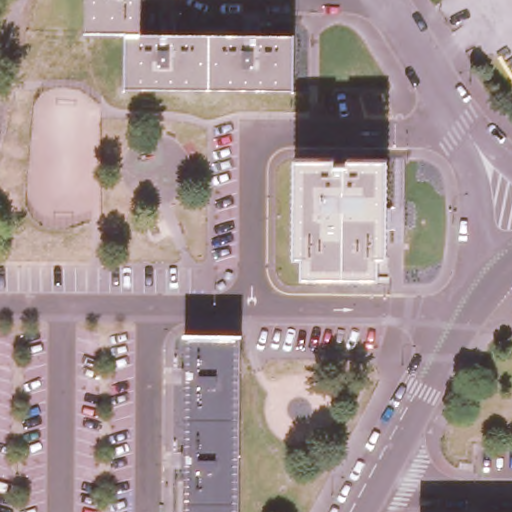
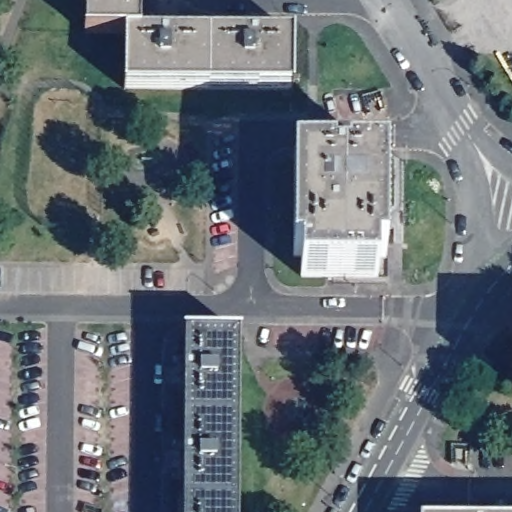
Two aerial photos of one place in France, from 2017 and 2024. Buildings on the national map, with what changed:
unchanged [(146,31),(129,31),(89,31),(90,0),(146,0),(146,31)]
unchanged [(146,31),(166,31),(166,26),(181,26),(181,31),(247,32),(247,27),(262,27),(262,32),(298,32),(298,89),(129,88),(129,31),(146,31)]
unchanged [(340,155),(339,160),(352,159),(352,155),(391,156),(390,255),(382,255),(382,276),(305,275),(305,255),(298,255),(299,155),(340,155)]
unchanged [(177,465),(177,450),(182,450),(183,385),(178,385),(178,370),(183,370),(183,332),(241,332),(238,512),(181,512),(182,465),(177,465)]

